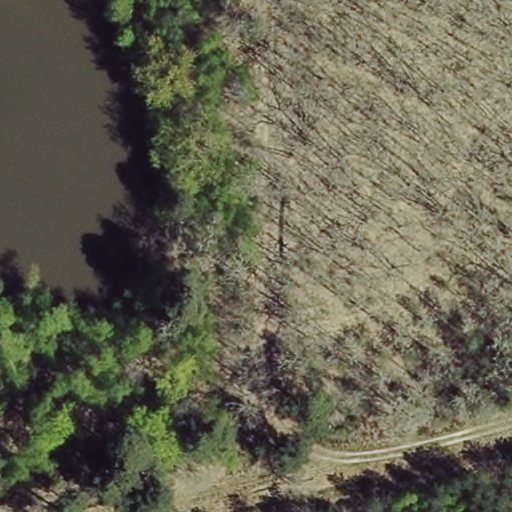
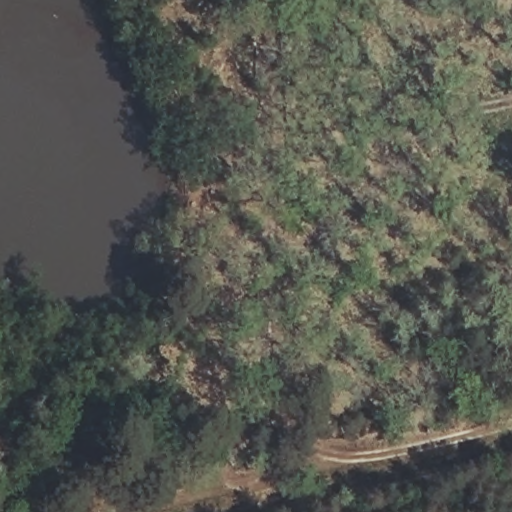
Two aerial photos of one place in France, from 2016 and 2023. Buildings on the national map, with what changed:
[]

